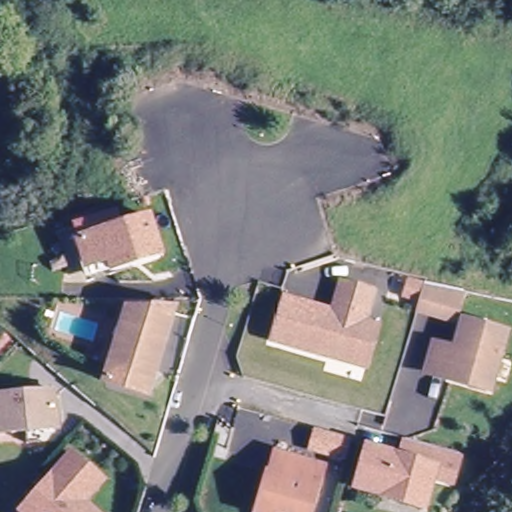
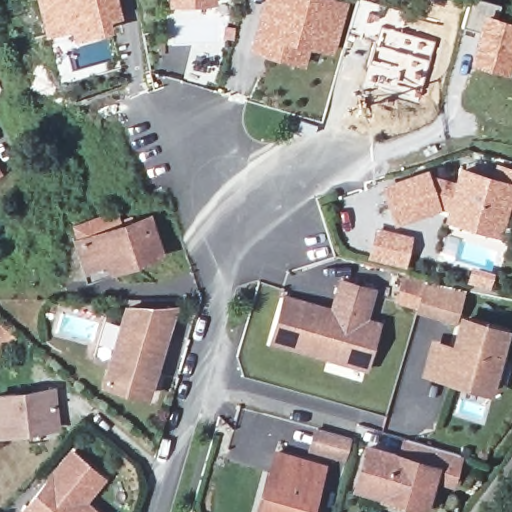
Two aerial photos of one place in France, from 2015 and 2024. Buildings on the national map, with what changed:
new [(109,24),(109,32),(74,40),(71,28),(46,33),(38,0),(116,0),(121,21),(109,24)]
new [(217,0),(217,4),(169,5),(169,0),(217,0)]
new [(334,56),(310,50),(305,65),(250,49),(265,0),(346,0),(349,1),(334,56)]
new [(498,16),(512,20),(512,64),(510,73),(471,63),(480,29),(464,27),(471,0),(489,0),(501,3),(498,16)]
new [(381,187),(429,170),(431,174),(454,181),(459,167),(512,182),(512,201),(502,238),(444,221),(448,210),(442,209),(394,226),(381,187)]
new [(0,179),(0,171),(4,177),(0,179)]
unchanged [(106,260),(84,266),(76,240),(145,219),(158,255),(109,270),(106,260)]
unchanged [(362,370),(348,366),(269,340),(282,298),(329,313),(339,282),(370,292),(361,322),(375,326),(362,370)]
unchanged [(419,287),(414,303),(399,300),(404,283),(419,287)]
unchanged [(452,326),(414,315),(424,285),(461,295),(452,326)]
unchanged [(170,312),(143,398),(99,384),(123,312),(170,312)]
unchanged [(439,352),(458,357),(467,327),(508,341),(491,397),(449,385),(430,378),(439,352)]
unchanged [(0,398),(54,393),(57,432),(0,437),(0,398)]
unchanged [(344,443),(338,465),(304,455),(310,433),(344,443)]
unchanged [(444,490),(426,483),(417,512),(351,491),(359,464),(391,474),(398,452),(404,454),(451,467),(444,490)]
unchanged [(271,457),(319,472),(306,512),(253,512),(271,457)]
unchanged [(74,458),(102,482),(81,506),(88,512),(24,512),(74,458)]

